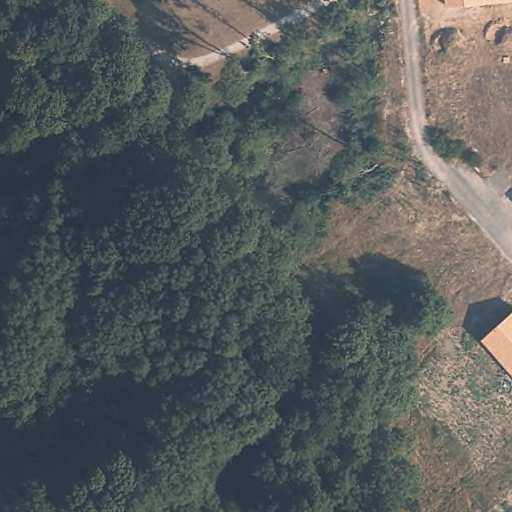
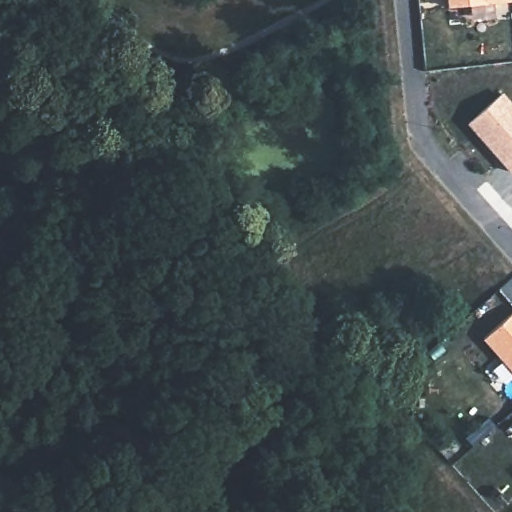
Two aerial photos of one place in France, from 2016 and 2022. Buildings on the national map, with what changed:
unchanged [(447,0),(512,0),(512,1),(448,6),(447,0)]
new [(512,105),(512,171),(471,124),(504,96),(512,105)]
unchanged [(512,313),(512,371),(483,338),(512,313)]

